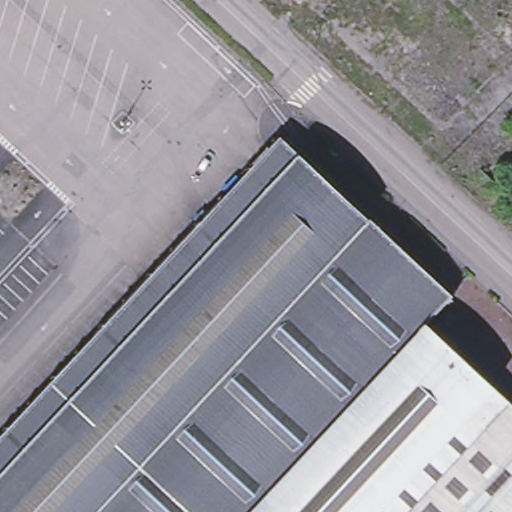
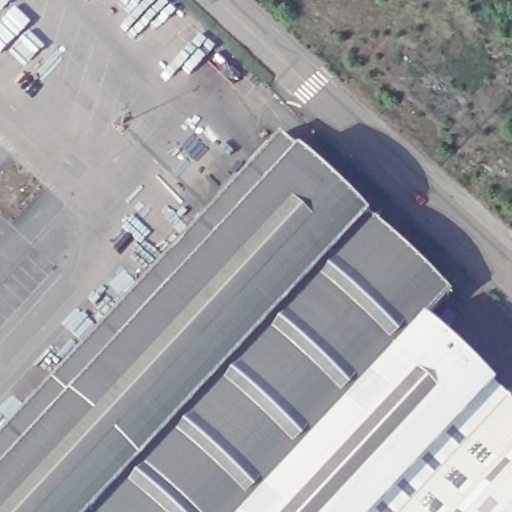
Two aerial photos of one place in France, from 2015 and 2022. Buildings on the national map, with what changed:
unchanged [(0,440),(281,138),(453,297),(425,327),(512,408),(512,512),(0,512),(0,440)]
unchanged [(449,312),(459,320),(446,337),(436,328),(449,312)]

